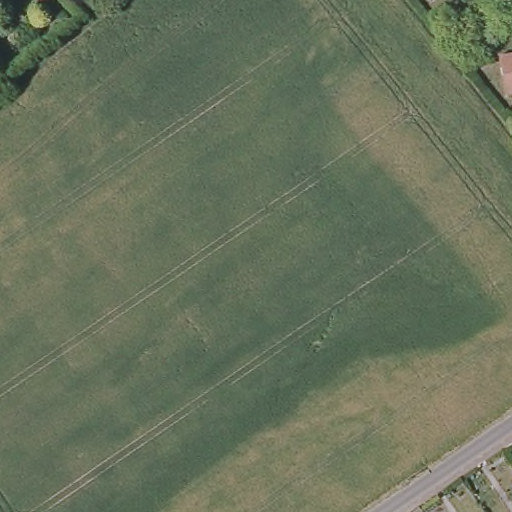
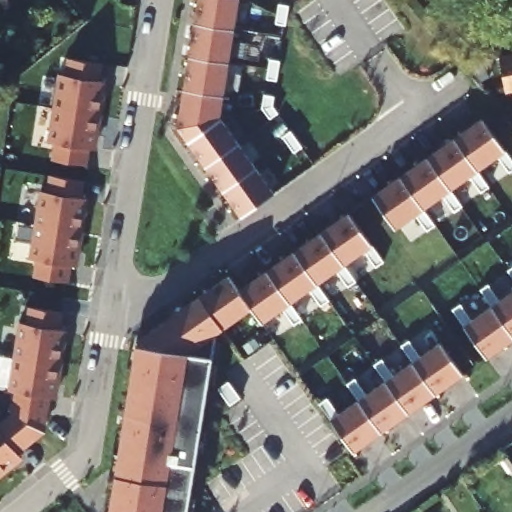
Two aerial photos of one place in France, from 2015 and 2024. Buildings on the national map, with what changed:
new [(223,114),(275,187),(242,210),(182,117),(198,0),(238,0),(223,114)]
new [(95,58),(94,75),(101,77),(90,144),(83,144),(80,164),(50,159),(52,139),(43,137),(52,69),(58,70),(58,53),(95,58)]
unchanged [(498,56),(512,53),(512,94),(506,95),(498,56)]
new [(476,106),(502,144),(395,220),(370,186),(476,106)]
new [(80,176),(77,195),(83,196),(73,265),(63,265),(62,282),(30,276),(33,256),(24,256),(35,186),(45,187),(47,171),(80,176)]
new [(233,268),(245,281),(345,203),(377,237),(258,328),(247,313),(217,332),(213,351),(225,350),(197,512),(110,512),(146,337),(233,268)]
new [(512,334),(485,355),(475,344),(455,319),(512,277),(512,334)]
new [(23,301),(60,309),(55,323),(70,325),(60,402),(43,399),(42,415),(12,408),(8,388),(0,387),(0,368),(7,318),(22,319),(23,301)]
new [(442,328),(472,369),(355,451),(327,415),(442,328)]
new [(2,423),(11,412),(35,439),(20,448),(25,457),(0,478),(0,421),(2,423)]

